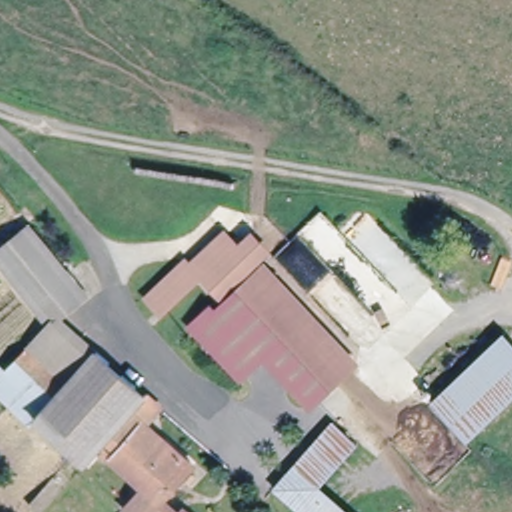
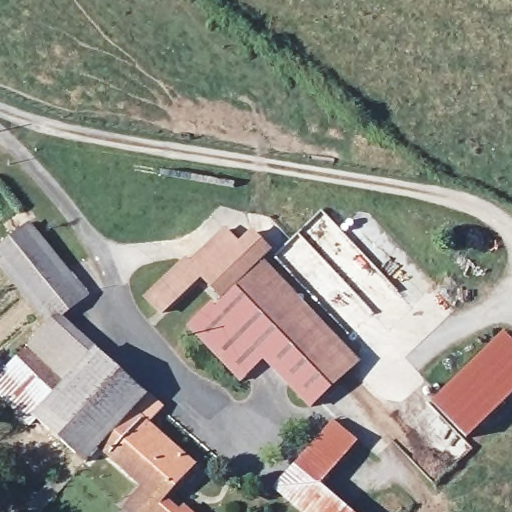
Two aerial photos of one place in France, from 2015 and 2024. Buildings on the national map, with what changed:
unchanged [(64,321),(55,326),(0,259),(0,256),(35,225),(94,297),(64,321)]
unchanged [(265,252),(223,295),(201,275),(163,312),(147,297),(185,257),(194,264),(220,238),(238,255),(253,239),(265,252)]
unchanged [(357,365),(313,405),(267,357),(243,379),(190,325),(211,304),(218,309),(260,266),(357,365)]
unchanged [(15,372),(55,326),(64,321),(146,405),(139,414),(102,451),(88,465),(52,429),(46,436),(0,396),(0,374),(6,366),(15,372)]
unchanged [(512,334),(512,396),(470,437),(432,398),(503,325),(512,334)]
unchanged [(139,414),(193,469),(163,505),(172,512),(126,512),(118,505),(136,485),(102,451),(139,414)]
unchanged [(273,478),(336,416),(358,440),(320,476),(353,512),(305,512),(273,478)]
unchanged [(182,508),(187,512),(178,512),(182,508)]

